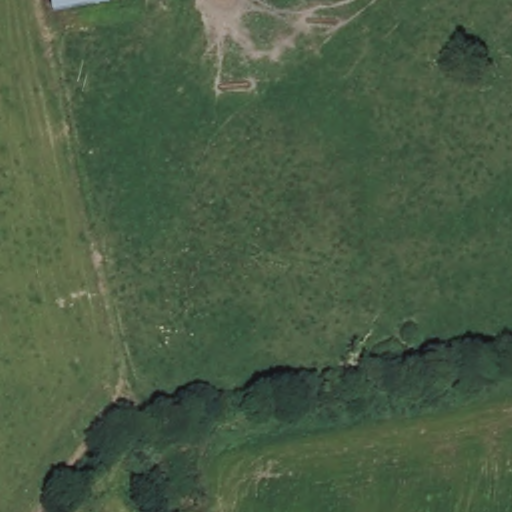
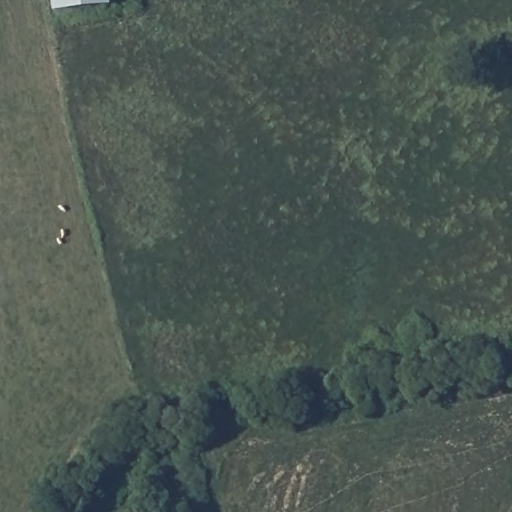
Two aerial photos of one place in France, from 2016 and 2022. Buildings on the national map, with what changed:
unchanged [(101,4),(60,9),(59,0),(100,0),(101,4)]

